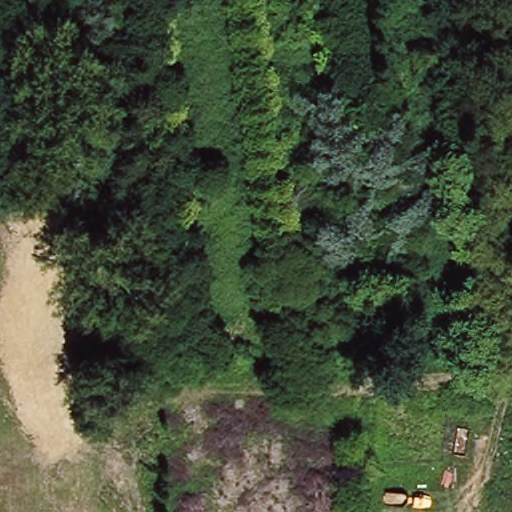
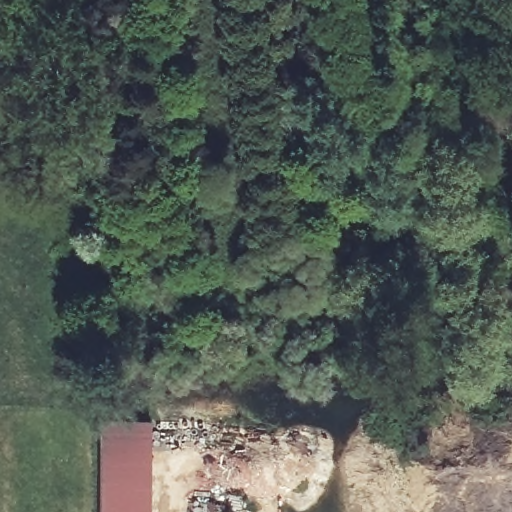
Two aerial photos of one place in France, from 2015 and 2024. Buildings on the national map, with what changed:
new [(98,425),(151,425),(151,512),(98,512),(98,425)]

